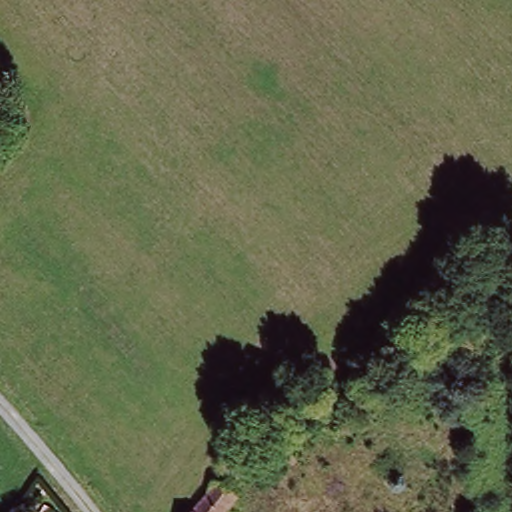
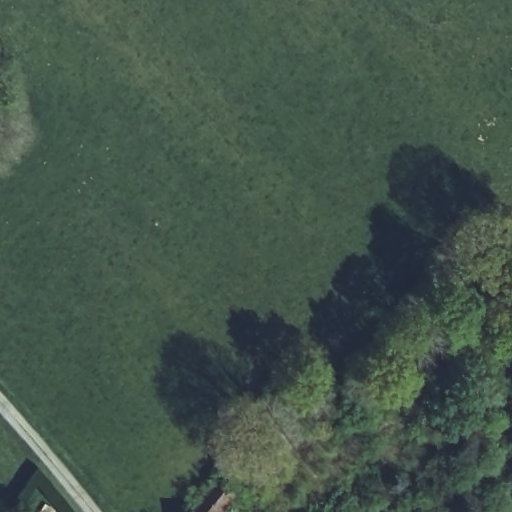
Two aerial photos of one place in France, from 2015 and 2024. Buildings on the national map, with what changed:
unchanged [(192,510),(194,507),(217,479),(239,496),(226,512),(194,512),(192,510)]
unchanged [(192,510),(194,512),(190,512),(192,510)]

